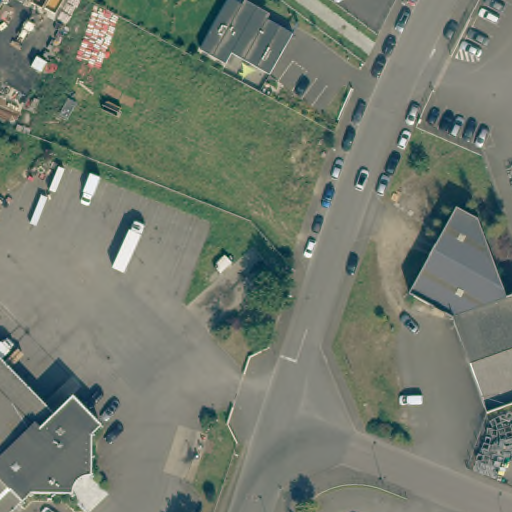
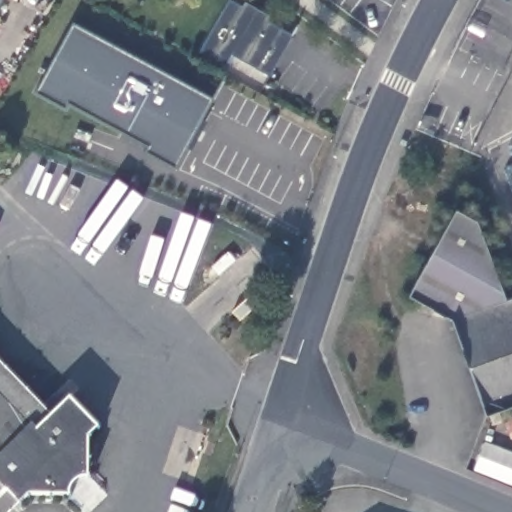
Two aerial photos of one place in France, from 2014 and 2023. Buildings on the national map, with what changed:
unchanged [(232,55),(226,67),(198,52),(226,0),(228,0),(243,7),(245,2),(269,16),(267,20),(293,34),(271,75),(232,55)]
new [(73,24),(210,97),(175,166),(146,150),(149,146),(68,101),(65,107),(37,91),(73,24)]
unchanged [(477,227),(501,299),(512,295),(512,403),(483,413),(452,320),(404,298),(450,213),(477,227)]
unchanged [(55,412),(73,397),(102,425),(93,433),(92,456),(91,475),(85,476),(79,477),(75,482),(73,488),(72,493),(31,492),(23,500),(10,512),(0,512),(0,356),(55,412)]

